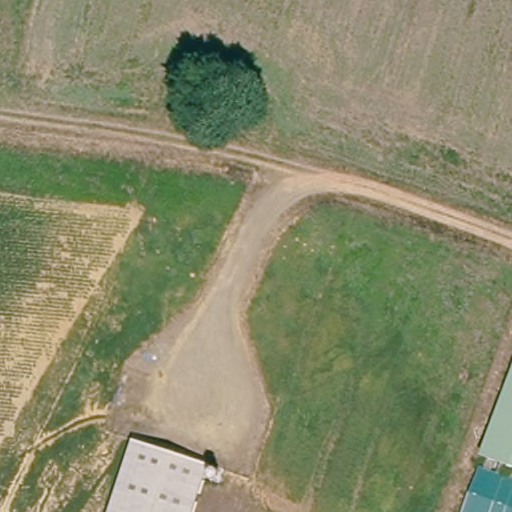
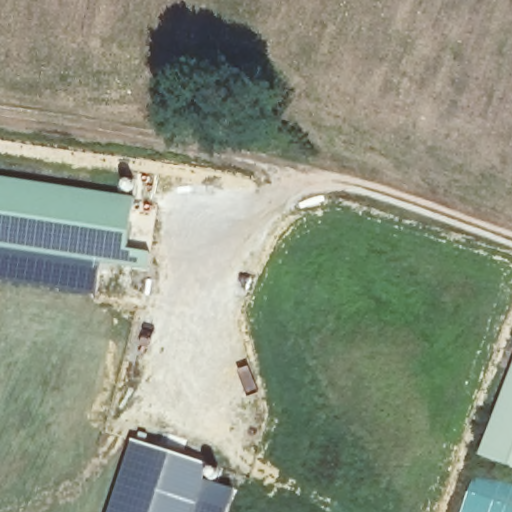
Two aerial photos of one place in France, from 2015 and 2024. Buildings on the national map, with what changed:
new [(147,267),(122,263),(0,245),(0,177),(135,197),(126,249),(149,253),(147,267)]
unchanged [(512,377),(512,469),(482,458),(512,377)]
unchanged [(191,512),(109,512),(134,437),(146,441),(208,461),(191,512)]

